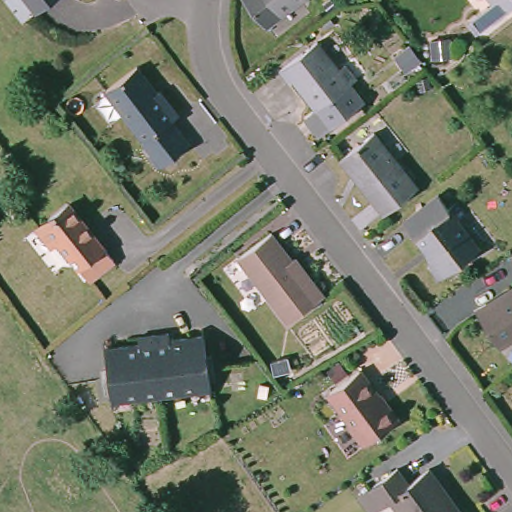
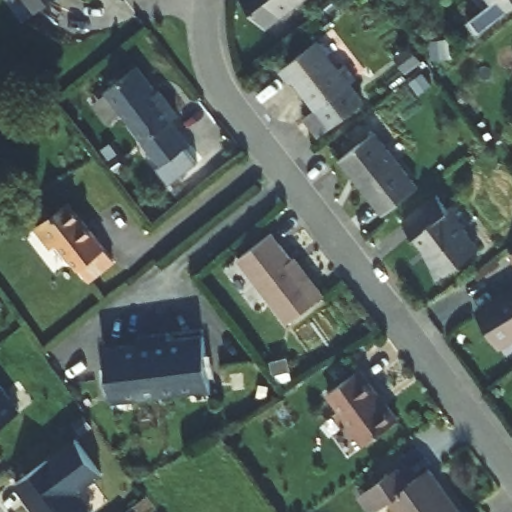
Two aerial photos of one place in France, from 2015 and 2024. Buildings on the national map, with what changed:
unchanged [(33,0),(49,0),(39,8),(33,0)]
unchanged [(275,0),(300,0),(285,12),(275,0)]
unchanged [(486,0),(506,0),(493,9),(486,0)]
unchanged [(320,34),(341,63),(347,58),(357,71),(351,76),(365,94),(323,129),(308,111),(319,102),(296,74),(292,77),(282,64),(320,34)]
unchanged [(137,60),(156,85),(159,83),(178,107),(171,113),(190,136),(162,158),(105,84),(137,60)]
unchanged [(377,128),(421,182),(390,208),(345,154),(377,128)]
unchanged [(438,189),(447,202),(456,196),(465,209),(457,215),(479,244),(445,269),(405,215),(438,189)]
unchanged [(122,258),(98,278),(81,260),(77,262),(62,245),(60,247),(43,227),(75,202),(122,258)]
unchanged [(272,228),(310,276),(312,274),(325,290),(290,317),(240,253),(272,228)]
unchanged [(512,339),(510,340),(489,307),(485,302),(512,286),(512,339)]
unchanged [(115,396),(106,341),(140,338),(138,330),(156,329),(171,327),(171,334),(206,330),(213,382),(163,389),(115,396)]
unchanged [(360,367),(385,401),(387,399),(400,416),(364,443),(349,422),(352,420),(330,389),(360,367)]
new [(6,391),(20,380),(35,400),(0,427),(0,383),(6,391)]
new [(105,471),(80,491),(95,510),(93,512),(35,512),(13,482),(76,435),(105,471)]
unchanged [(409,467),(420,481),(440,467),(450,481),(446,484),(467,512),(410,512),(400,498),(381,512),(370,496),(409,467)]

